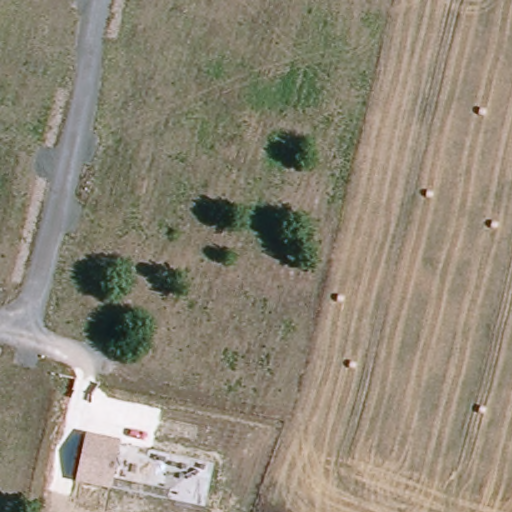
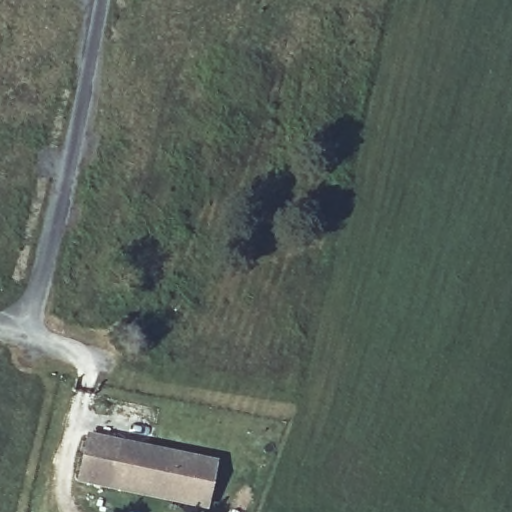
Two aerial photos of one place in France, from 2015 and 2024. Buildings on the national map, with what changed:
unchanged [(123,440),(113,485),(81,478),(90,435),(123,440)]
new [(113,490),(113,485),(123,440),(218,460),(207,510),(113,490)]

